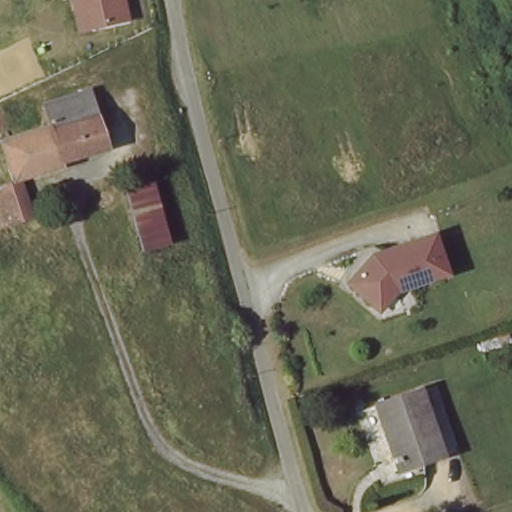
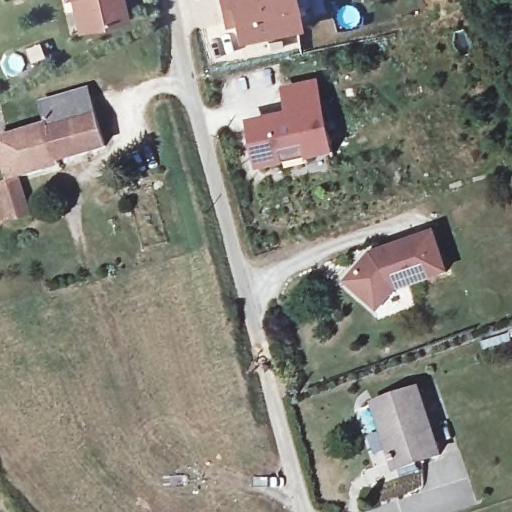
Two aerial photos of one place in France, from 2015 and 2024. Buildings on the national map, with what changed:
unchanged [(60,1),(60,0),(69,0),(60,1)]
unchanged [(79,33),(72,0),(124,0),(128,21),(79,33)]
new [(300,27),(236,41),(233,28),(222,29),(216,0),(294,0),(300,27)]
new [(335,157),(308,162),(307,159),(285,162),(286,168),(258,173),(247,123),(288,114),(283,90),(320,82),(335,157)]
unchanged [(9,181),(0,149),(0,139),(50,123),(43,99),(86,86),(113,153),(23,181),(34,218),(0,230),(0,184),(9,181)]
unchanged [(370,254),(374,258),(381,255),(379,251),(431,232),(444,270),(393,287),(376,307),(346,281),(370,254)]
unchanged [(417,388),(438,454),(395,470),(375,405),(417,388)]

